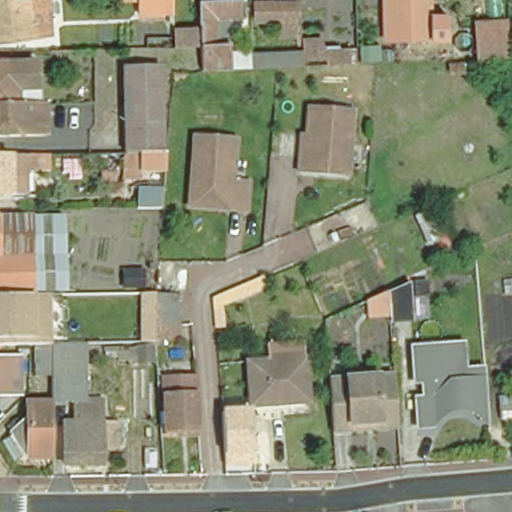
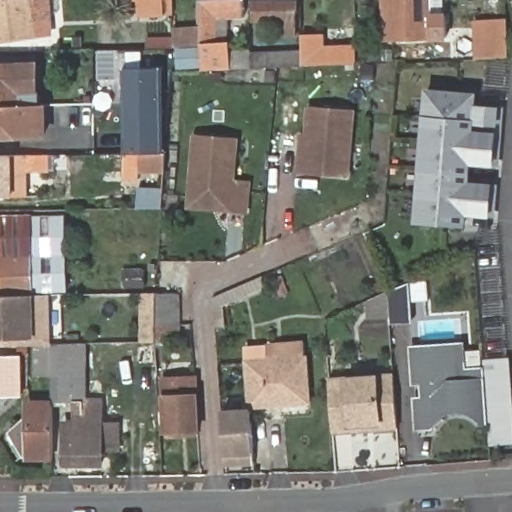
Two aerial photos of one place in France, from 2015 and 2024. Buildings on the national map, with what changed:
unchanged [(48,0),(51,37),(0,44),(0,2),(21,0),(48,0)]
unchanged [(172,0),(172,7),(173,15),(153,16),(152,0),(172,0)]
unchanged [(321,35),(324,50),(348,49),(351,65),(325,66),(325,60),(302,60),(302,67),(251,69),(201,72),(200,56),(200,50),(199,0),(244,0),(243,19),(228,20),(226,55),(251,54),(302,51),(302,35),(321,35)]
unchanged [(453,14),(453,39),(407,40),(393,41),(393,0),(438,0),(438,14),(453,14)]
unchanged [(296,1),(297,35),(277,36),(276,21),(254,21),(254,3),(296,1)]
unchanged [(483,23),(502,23),(504,57),(483,58),(483,23)]
unchanged [(407,47),(427,46),(427,61),(407,62),(407,47)]
unchanged [(36,67),(36,87),(19,87),(20,104),(20,107),(0,107),(0,68),(18,67),(36,67)]
unchanged [(125,105),(124,68),(160,67),(161,104),(125,105)]
new [(476,104),(498,106),(493,166),(471,164),(470,182),(491,183),(489,217),(468,215),(468,227),(413,223),(425,89),(476,92),(476,104)]
unchanged [(139,155),(125,155),(125,105),(161,104),(161,155),(165,155),(164,174),(140,174),(139,155)]
unchanged [(48,106),(49,137),(24,137),(0,138),(0,107),(20,107),(23,107),(48,106)]
unchanged [(311,142),(314,114),(357,118),(351,185),(301,181),(303,165),(305,142),(311,142)]
unchanged [(196,178),(199,141),(240,144),(236,187),(250,188),(247,219),(231,217),(232,211),(198,207),(193,207),(196,178)]
unchanged [(27,173),(21,173),(21,196),(0,196),(0,156),(27,156),(27,173)]
unchanged [(138,194),(163,194),(162,209),(138,209),(138,194)]
unchanged [(64,215),(65,295),(51,296),(40,296),(39,216),(64,215)]
unchanged [(40,296),(0,297),(0,217),(39,216),(40,296)]
unchanged [(144,289),(121,290),(121,268),(144,268),(144,289)]
unchanged [(413,280),(417,322),(389,323),(386,290),(413,280)]
demolished [(502,300),(500,282),(512,281),(512,299),(502,300)]
unchanged [(235,305),(224,310),(226,328),(208,333),(206,303),(231,292),(235,305)]
unchanged [(179,341),(154,342),(141,343),(141,293),(156,293),(154,326),(178,326),(179,341)]
unchanged [(52,339),(0,341),(0,297),(40,296),(51,296),(52,339)]
unchanged [(484,403),(485,412),(474,413),(461,405),(448,406),(438,412),(427,424),(415,425),(413,397),(421,397),(419,380),(411,381),(410,363),(418,362),(417,345),(459,342),(461,369),(481,367),(484,403)]
unchanged [(40,377),(40,346),(56,346),(89,345),(89,401),(56,401),(56,376),(40,377)]
new [(512,395),(512,444),(491,445),(484,359),(509,357),(512,395)]
unchanged [(0,359),(19,358),(20,394),(0,394),(0,359)]
unchanged [(305,359),(308,403),(252,407),(249,364),(305,359)]
unchanged [(393,374),(394,395),(396,427),(331,432),(330,417),(327,380),(393,374)]
unchanged [(170,438),(168,403),(167,383),(198,381),(200,400),(202,435),(170,438)]
demolished [(498,424),(496,399),(512,398),(512,423),(498,424)]
unchanged [(31,458),(15,432),(34,414),(34,404),(56,404),(56,458),(31,458)]
unchanged [(64,420),(75,421),(76,414),(87,414),(87,408),(102,409),(103,469),(66,467),(64,420)]
unchanged [(252,463),(230,464),(227,420),(249,419),(252,463)]

